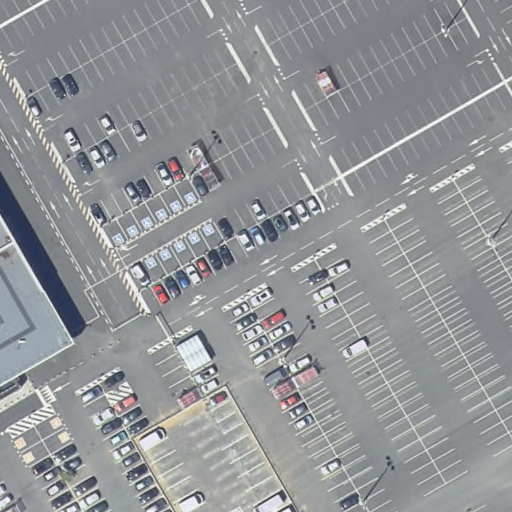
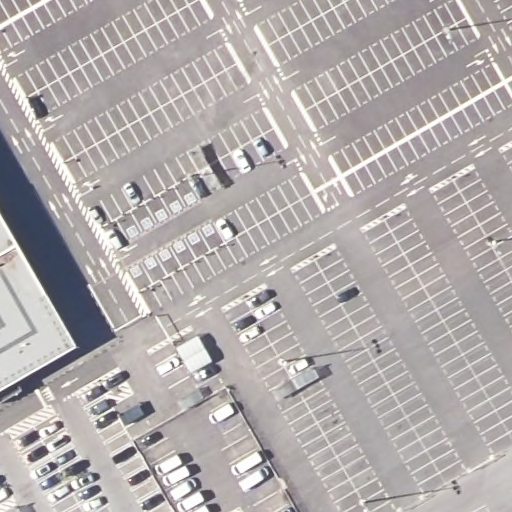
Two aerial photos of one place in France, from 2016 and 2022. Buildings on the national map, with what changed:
unchanged [(0,414),(0,213),(73,340),(12,375),(27,401),(1,415),(0,414)]

